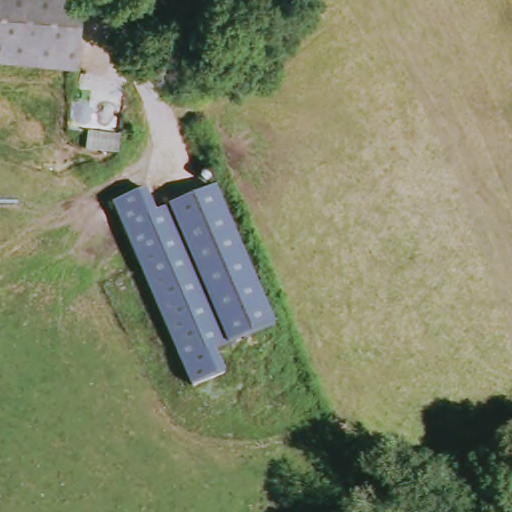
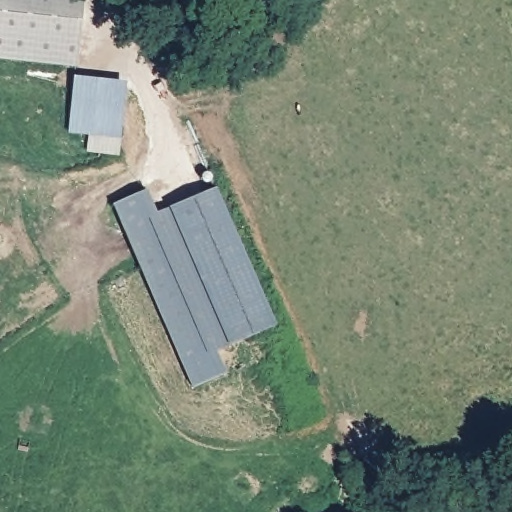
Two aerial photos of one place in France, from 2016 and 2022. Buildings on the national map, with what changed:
unchanged [(0,60),(0,0),(79,0),(73,66),(0,60)]
new [(118,157),(86,154),(88,135),(69,134),(74,78),(126,82),(118,157)]
demolished [(88,127),(118,130),(116,147),(87,144),(88,127)]
unchanged [(218,348),(228,371),(196,385),(115,202),(147,189),(157,211),(216,185),(278,322),(218,348)]

